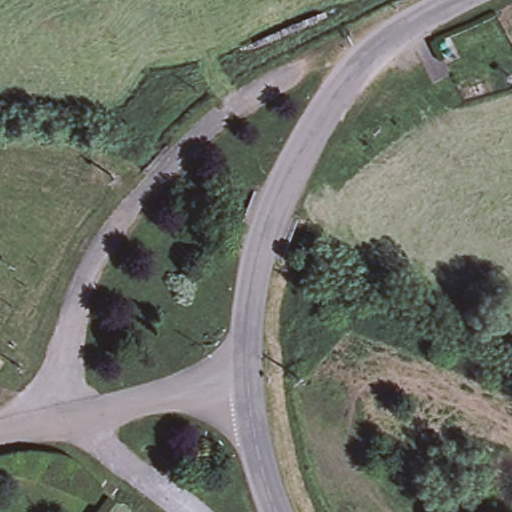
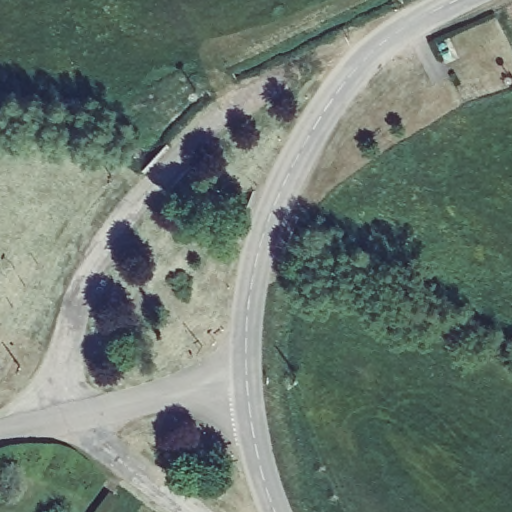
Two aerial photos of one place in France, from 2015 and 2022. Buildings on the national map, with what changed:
unchanged [(167,107),(162,98),(171,92),(177,100),(167,107)]

